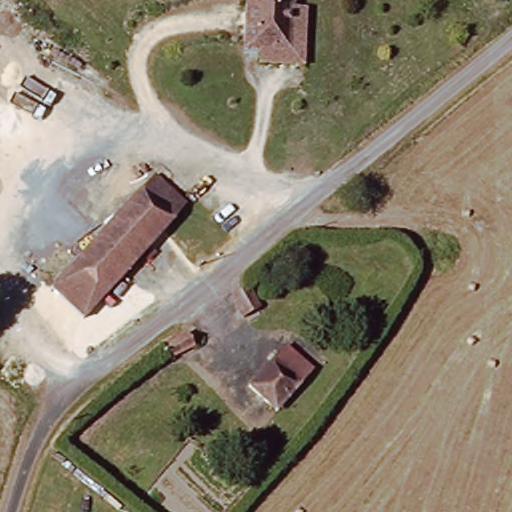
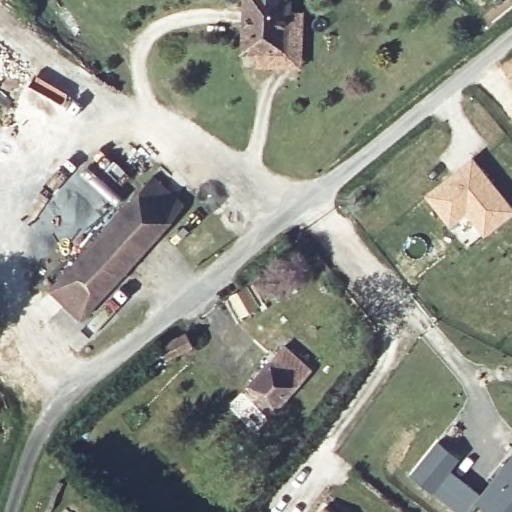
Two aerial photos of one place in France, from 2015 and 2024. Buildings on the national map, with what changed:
unchanged [(261,56),(247,56),(246,0),(293,0),(293,12),(292,57),(261,56)]
unchanged [(306,15),(306,69),(262,68),(261,56),(292,57),(293,12),(306,15)]
new [(472,156),(512,206),(512,211),(483,235),(465,213),(449,226),(425,196),(472,156)]
unchanged [(80,326),(44,292),(151,180),(186,210),(80,326)]
unchanged [(230,317),(219,298),(237,288),(248,307),(230,317)]
unchanged [(158,362),(151,346),(177,332),(185,347),(158,362)]
unchanged [(278,415),(254,390),(284,356),(295,367),(301,361),(315,377),(278,415)]
new [(483,497),(469,512),(467,512),(462,507),(436,486),(416,468),(443,436),(463,453),(454,466),(480,487),(486,492),(512,461),(512,512),(500,512),(483,497)]
new [(329,505),(338,512),(324,512),(329,505)]

